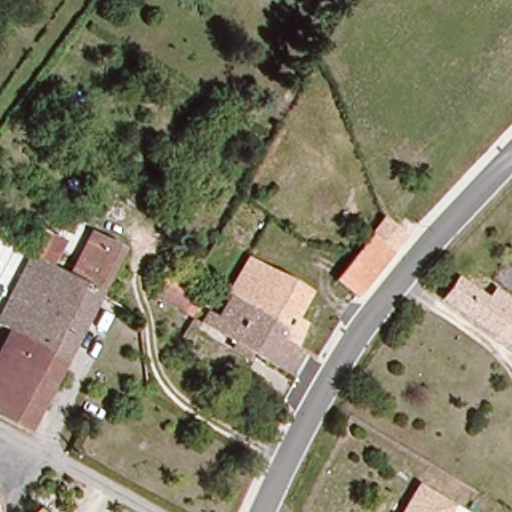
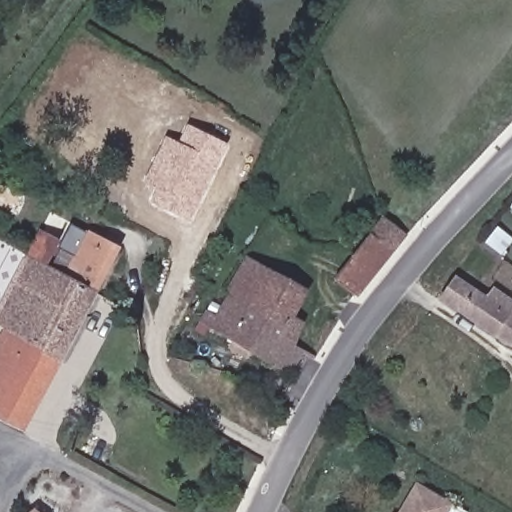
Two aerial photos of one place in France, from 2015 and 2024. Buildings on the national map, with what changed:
new [(229,144),(191,221),(150,201),(157,190),(144,182),(166,136),(178,142),(188,125),(229,144)]
unchanged [(387,257),(359,234),(374,212),(405,235),(387,257)]
unchanged [(63,273),(84,227),(117,242),(94,289),(63,273)]
unchanged [(94,289),(22,430),(0,419),(0,332),(0,294),(20,255),(32,232),(51,243),(41,265),(63,273),(94,289)]
unchanged [(359,234),(387,257),(370,279),(354,300),(328,280),(334,270),(345,256),(359,234)]
unchanged [(269,264),(250,300),(227,287),(246,251),(269,264)]
unchanged [(250,300),(269,264),(297,279),(283,303),(294,310),(287,321),(250,300)]
unchanged [(453,273),(480,292),(487,281),(512,296),(512,304),(493,337),(434,299),(453,273)]
unchanged [(187,314),(154,295),(162,279),(195,295),(187,314)]
unchanged [(291,371),(198,320),(208,300),(218,306),(227,287),(250,300),(287,321),(283,328),(308,343),(291,371)]
unchanged [(110,401),(98,395),(107,379),(117,385),(110,401)]
unchanged [(400,512),(418,482),(451,504),(447,512),(400,512)]
unchanged [(43,512),(31,512),(38,506),(43,512)]

